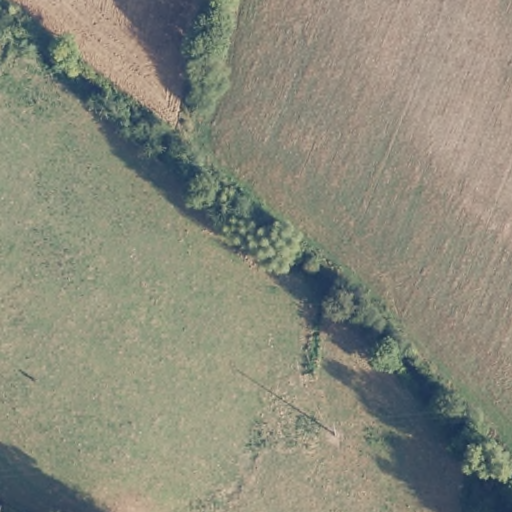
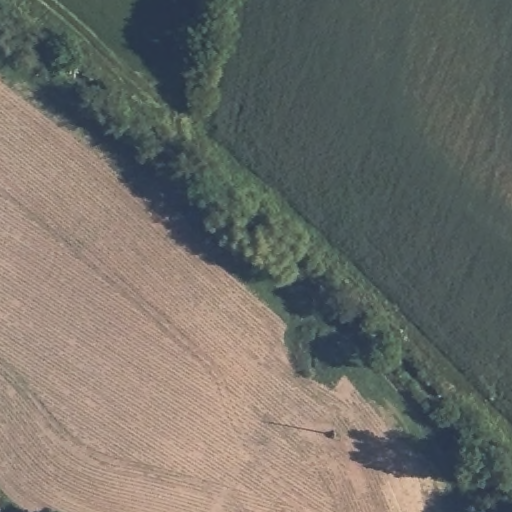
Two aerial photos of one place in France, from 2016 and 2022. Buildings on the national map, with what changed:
unchanged [(4,505),(2,512),(0,512),(0,504),(4,505)]

